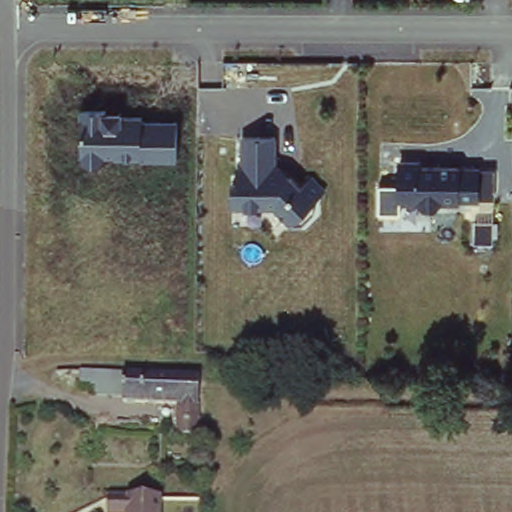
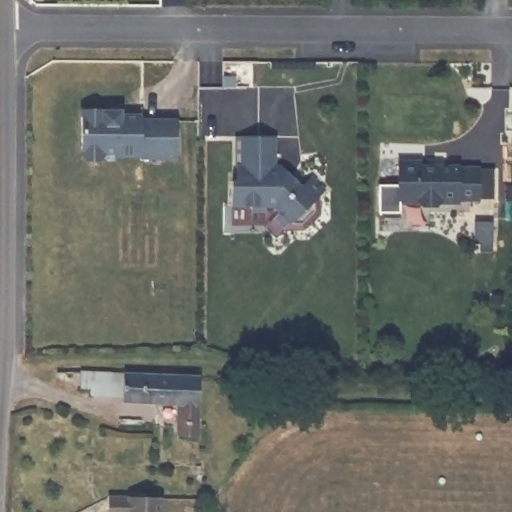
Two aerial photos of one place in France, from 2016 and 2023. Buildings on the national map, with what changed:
unchanged [(137,104),(138,115),(179,116),(176,160),(83,159),(88,102),(137,104)]
unchanged [(283,137),(282,163),(309,182),(316,175),(329,190),(296,226),(275,210),(234,209),(234,168),(244,167),(246,138),(283,137)]
unchanged [(481,158),(480,201),(398,200),(399,157),(481,158)]
unchanged [(199,372),(199,377),(198,432),(177,431),(177,400),(123,398),(122,392),(91,391),(91,385),(80,384),(80,367),(199,372)]
unchanged [(160,512),(107,512),(108,492),(161,493),(160,512)]

